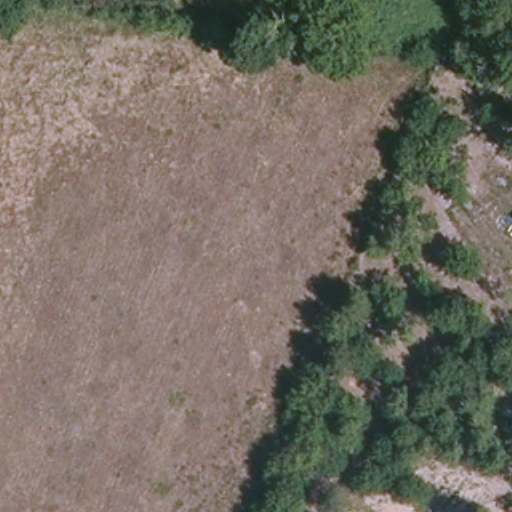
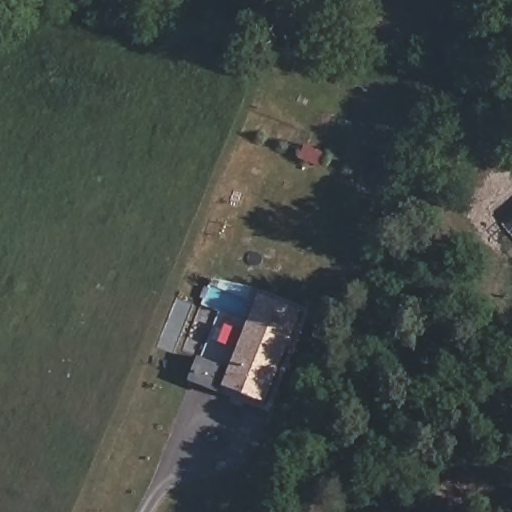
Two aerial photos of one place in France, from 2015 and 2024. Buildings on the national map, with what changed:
new [(260,293),(305,311),(267,405),(223,387),(221,392),(190,380),(199,357),(230,369),(260,293)]

